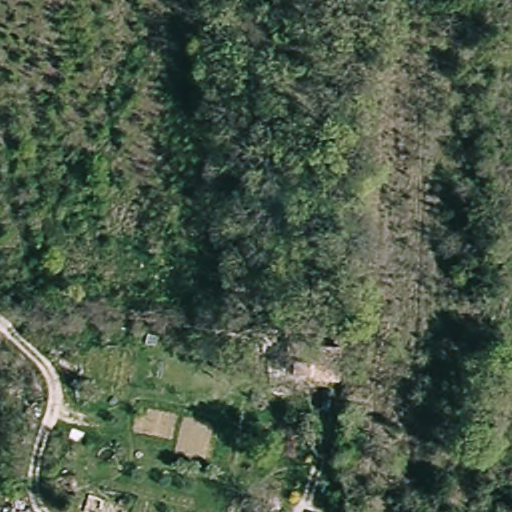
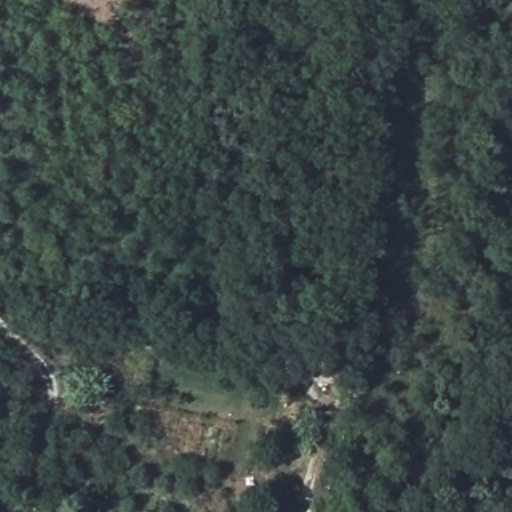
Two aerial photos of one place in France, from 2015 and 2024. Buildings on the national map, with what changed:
unchanged [(297,343),(349,346),(347,380),(301,377),(295,376),(295,365),(297,343)]
unchanged [(3,512),(0,512),(0,511),(3,512)]

